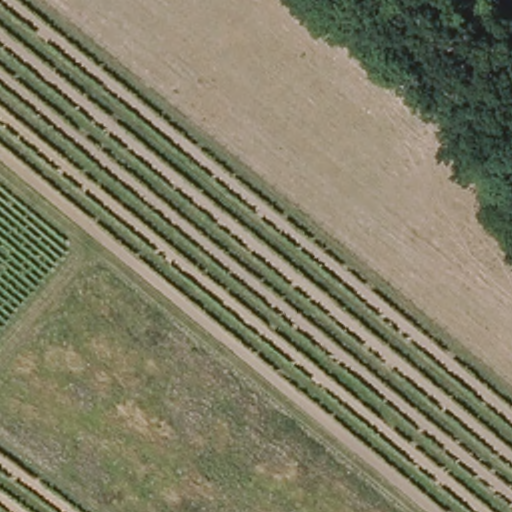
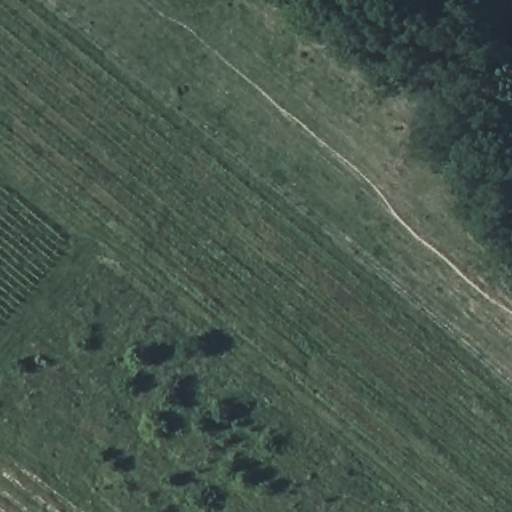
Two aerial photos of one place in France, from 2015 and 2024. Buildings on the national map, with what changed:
[]

